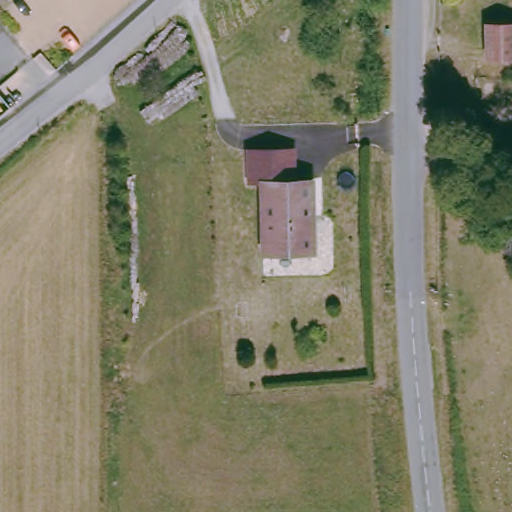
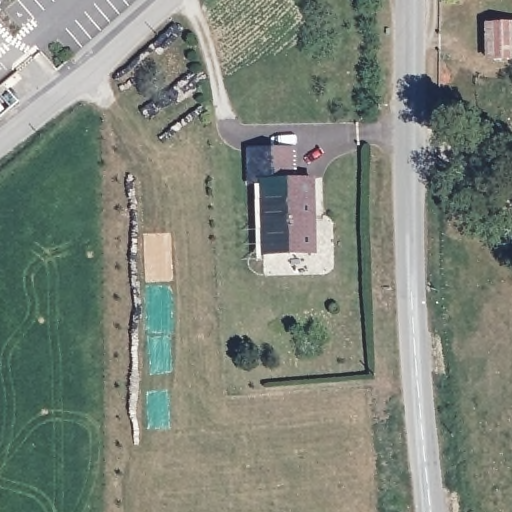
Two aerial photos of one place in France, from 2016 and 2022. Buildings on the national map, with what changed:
unchanged [(480,57),(480,18),(510,19),(512,19),(512,57),(480,57)]
unchanged [(261,186),(249,186),(249,150),(297,150),(297,180),(316,180),(317,254),(264,257),(261,186)]

